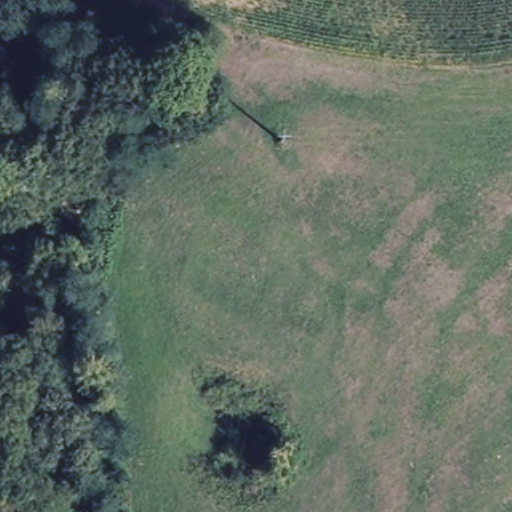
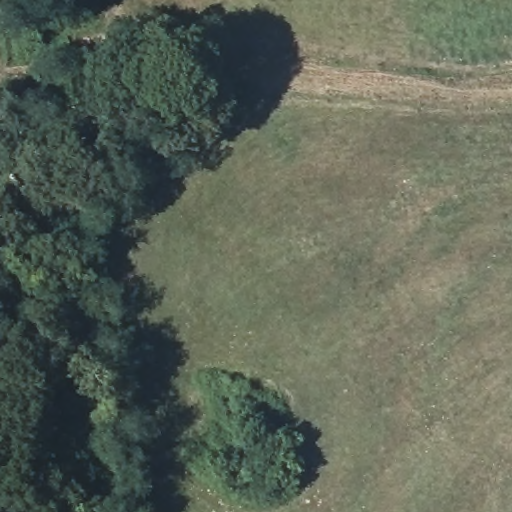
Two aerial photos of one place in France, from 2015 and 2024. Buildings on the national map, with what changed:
[]

